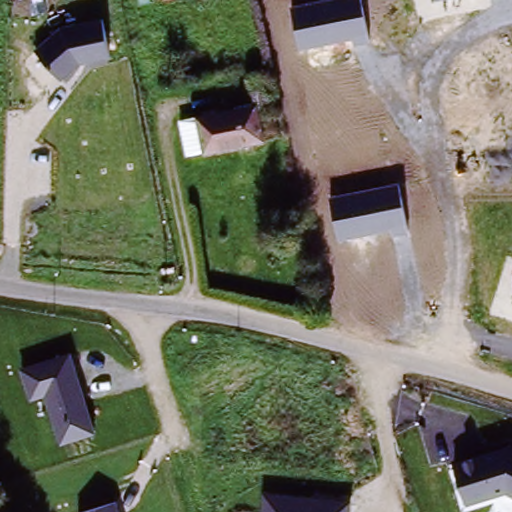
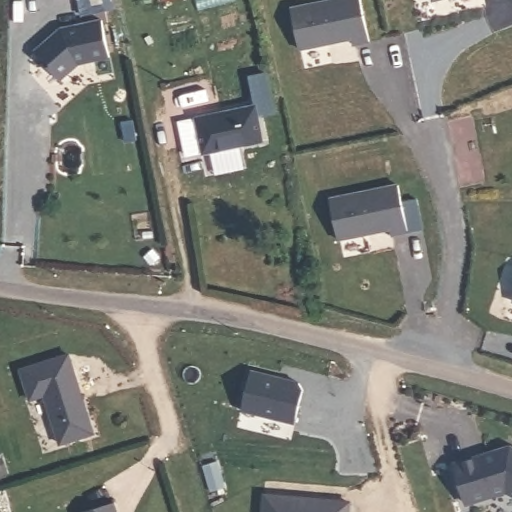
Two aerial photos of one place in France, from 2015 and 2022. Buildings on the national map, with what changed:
unchanged [(361,0),(370,41),(355,45),(354,36),(300,47),(292,5),(320,0),(361,0)]
demolished [(5,25),(14,24),(19,50),(0,54),(0,11),(5,25)]
unchanged [(62,27),(102,18),(109,58),(79,63),(60,82),(35,49),(62,27)]
unchanged [(243,81),(259,77),(270,142),(200,156),(195,123),(247,111),(243,81)]
unchanged [(399,183),(407,231),(395,236),(394,228),(337,238),(331,194),(399,183)]
unchanged [(95,433),(62,445),(45,396),(30,399),(22,369),(72,353),(95,433)]
new [(252,371),(300,382),(304,389),(295,423),(242,410),(252,371)]
unchanged [(512,446),(512,498),(505,495),(466,507),(452,464),(508,443),(512,446)]
unchanged [(353,502),(352,512),(261,512),(262,493),(353,502)]
unchanged [(117,503),(119,512),(86,512),(117,503)]

